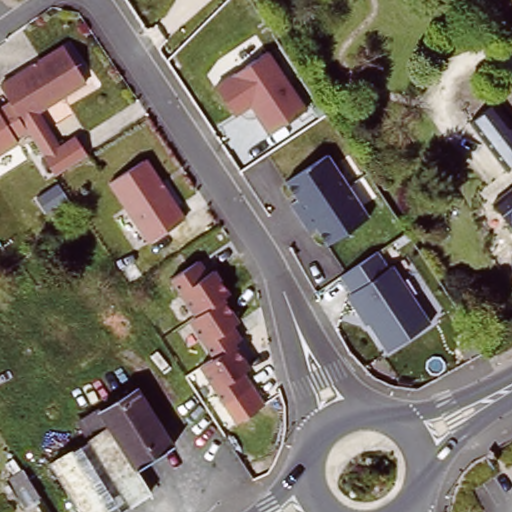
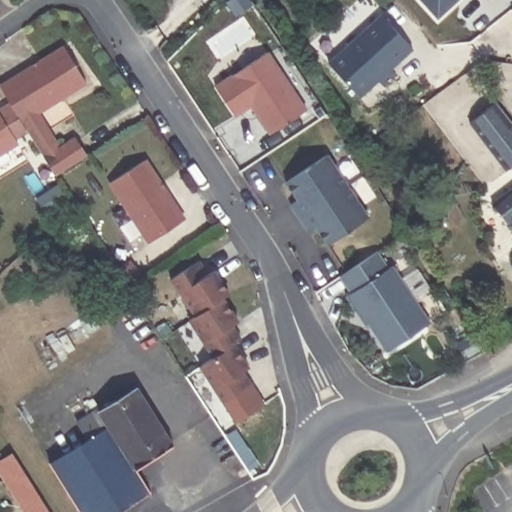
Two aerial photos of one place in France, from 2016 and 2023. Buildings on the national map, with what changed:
new [(437,17),(422,0),(456,0),(437,17)]
demolished [(490,2),(488,0),(491,0),(490,2)]
new [(382,13),(412,49),(390,69),(393,74),(380,86),(377,80),(360,96),(327,61),(382,13)]
unchanged [(30,67),(31,70),(62,50),(84,84),(20,124),(0,92),(0,86),(30,67)]
unchanged [(306,112),(267,138),(250,110),(232,118),(213,86),(269,53),(306,112)]
unchanged [(458,131),(464,127),(485,110),(512,144),(512,167),(502,175),(496,180),(458,131)]
unchanged [(38,112),(60,147),(75,138),(85,156),(53,176),(20,124),(38,112)]
unchanged [(16,145),(0,155),(0,119),(16,145)]
unchanged [(325,245),(315,229),(305,234),(289,208),(296,202),(283,182),(323,155),(367,220),(325,245)]
unchanged [(148,242),(109,179),(143,157),(161,187),(163,186),(185,220),(148,242)]
unchanged [(512,191),(512,235),(491,207),(512,191)]
unchanged [(503,253),(512,246),(512,266),(507,262),(503,253)]
unchanged [(385,268),(392,265),(430,326),(385,352),(367,325),(362,327),(343,296),(346,293),(337,277),(375,252),(385,268)]
unchanged [(193,320),(169,282),(196,264),(205,278),(211,273),(215,280),(227,297),(221,302),(193,320)]
unchanged [(236,325),(230,330),(239,343),(231,348),(211,361),(187,323),(193,320),(221,302),(232,320),(236,325)]
unchanged [(247,372),(240,376),(256,407),(235,426),(222,407),(198,370),(211,361),(231,348),(243,366),(247,372)]
unchanged [(135,386),(171,442),(140,463),(104,406),(135,386)]
unchanged [(150,490),(114,512),(79,512),(47,462),(107,425),(98,410),(104,406),(140,463),(135,467),(150,490)]
unchanged [(25,508),(8,484),(25,473),(41,497),(25,508)]

